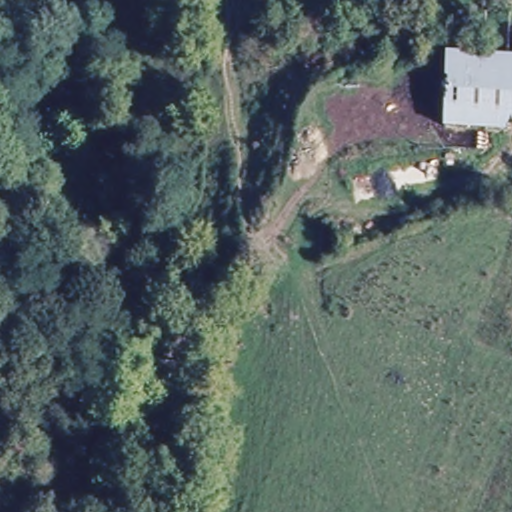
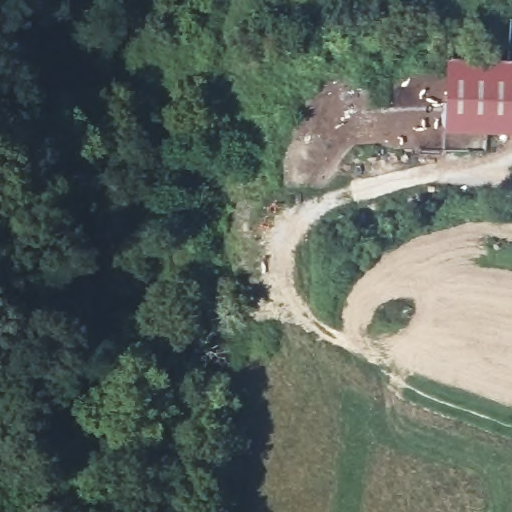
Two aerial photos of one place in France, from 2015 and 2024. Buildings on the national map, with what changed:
unchanged [(445,57),(512,59),(512,132),(443,130),(445,57)]

